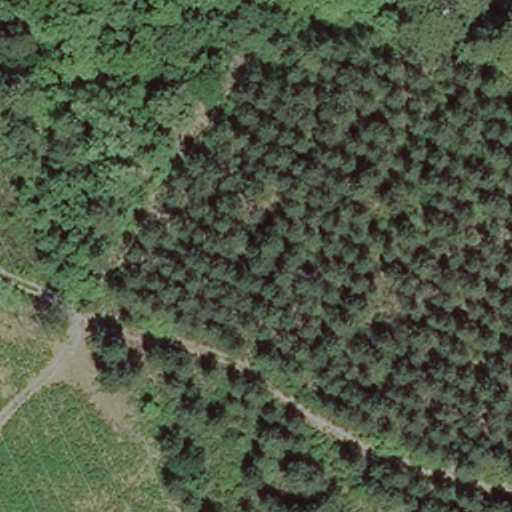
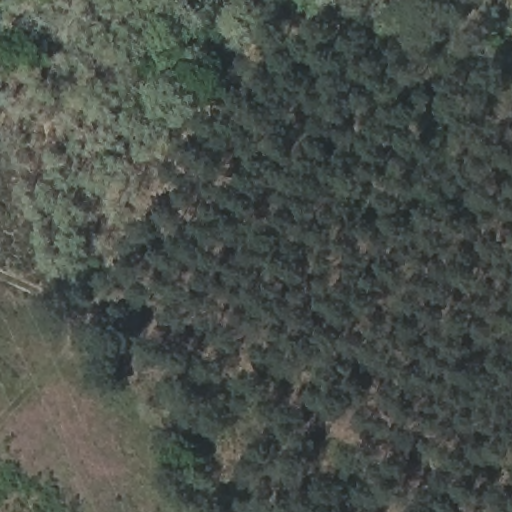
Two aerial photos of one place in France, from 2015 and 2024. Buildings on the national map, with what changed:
[]

